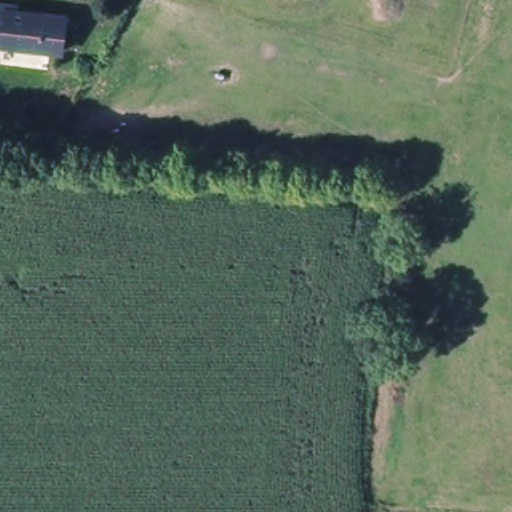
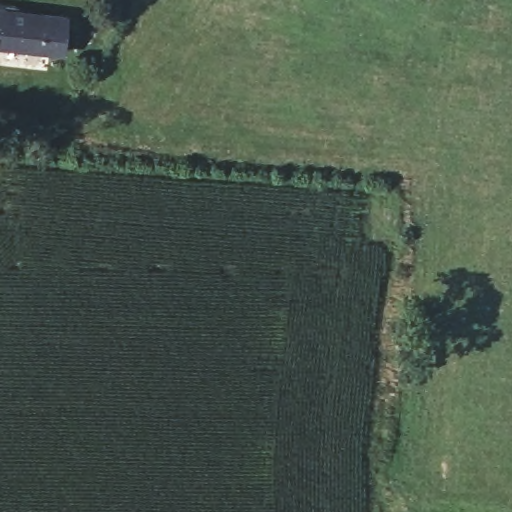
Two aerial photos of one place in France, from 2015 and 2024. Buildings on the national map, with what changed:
unchanged [(65,50),(0,43),(0,7),(69,14),(65,50)]

